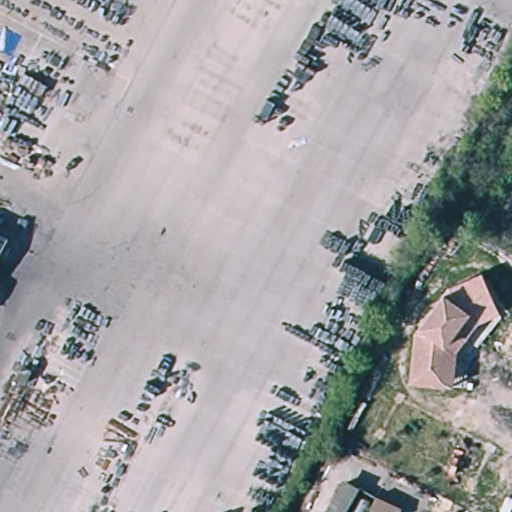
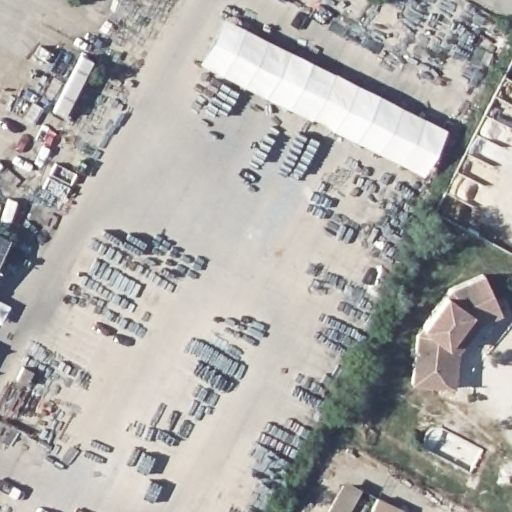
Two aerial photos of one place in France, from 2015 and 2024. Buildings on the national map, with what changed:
new [(421,174),(197,62),(221,16),(444,128),(421,174)]
unchanged [(6,247),(0,258),(0,243),(6,247)]
unchanged [(409,382),(417,325),(444,291),(447,286),(482,272),(494,299),(468,312),(475,322),(457,349),(454,385),(409,382)]
unchanged [(385,507),(383,512),(325,512),(339,484),(385,507)]

